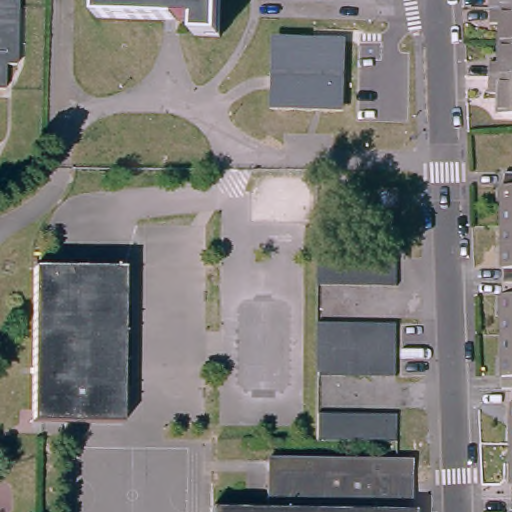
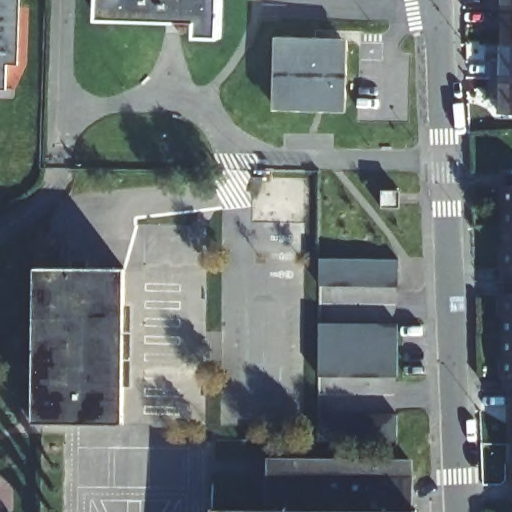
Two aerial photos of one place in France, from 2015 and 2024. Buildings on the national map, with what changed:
unchanged [(25,59),(10,59),(8,84),(0,84),(0,0),(26,0),(25,59)]
unchanged [(220,28),(194,29),(195,16),(102,17),(102,0),(220,0),(220,28)]
unchanged [(494,12),(494,0),(512,0),(512,12),(494,12)]
unchanged [(512,12),(512,47),(502,46),(502,27),(493,27),(494,12),(512,12)]
unchanged [(346,36),(345,108),(273,107),(273,35),(346,36)]
unchanged [(512,47),(512,80),(492,79),(492,64),(502,64),(502,46),(512,47)]
unchanged [(512,80),(512,116),(500,116),(500,97),(492,97),(492,79),(512,80)]
unchanged [(512,512),(512,392),(505,393),(509,172),(512,172),(512,512)]
unchanged [(398,188),(398,208),(378,208),(378,187),(398,188)]
unchanged [(358,251),(395,252),(395,278),(315,276),(317,249),(358,251)]
unchanged [(127,263),(123,422),(32,421),(35,262),(127,263)]
unchanged [(313,364),(315,317),(393,318),(394,369),(313,367),(313,364)]
unchanged [(317,406),(397,409),(398,432),(317,430),(317,406)]
unchanged [(270,499),(270,450),(401,454),(400,503),(407,503),(407,512),(215,512),(215,499),(270,499)]

